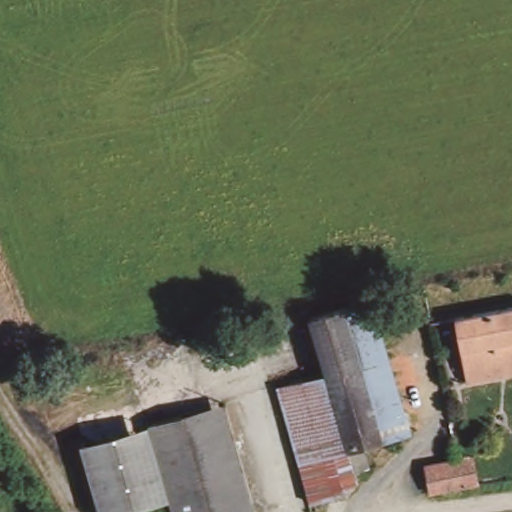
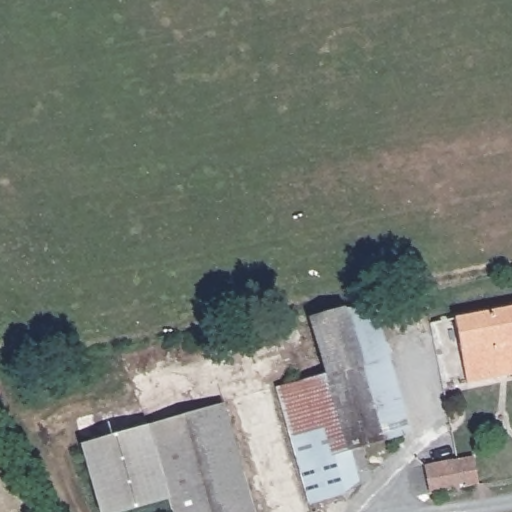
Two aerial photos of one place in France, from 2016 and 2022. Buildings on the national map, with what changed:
unchanged [(310,321),(371,304),(410,434),(363,448),(349,452),(325,374),(310,321)]
unchanged [(468,382),(456,318),(512,307),(512,372),(468,382)]
unchanged [(349,452),(363,448),(369,466),(353,470),(357,481),(343,488),(309,499),(275,388),(325,374),(349,452)]
unchanged [(203,409),(221,402),(251,498),(255,512),(237,512),(203,409)]
unchanged [(145,426),(203,409),(237,512),(172,512),(145,426)]
unchanged [(125,512),(99,512),(82,444),(145,426),(169,501),(125,512)]
unchanged [(461,464),(472,461),(478,486),(444,492),(433,494),(429,472),(441,469),(461,464)]

